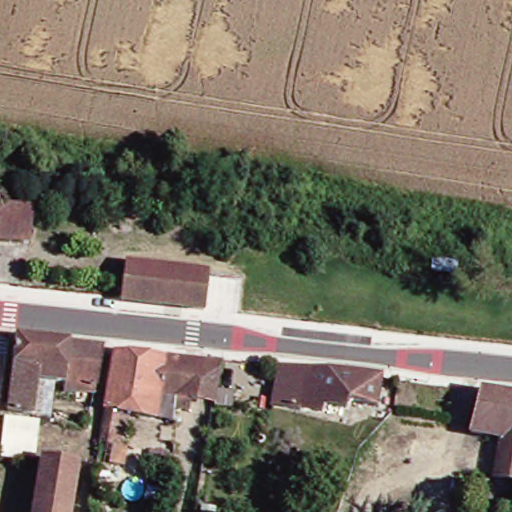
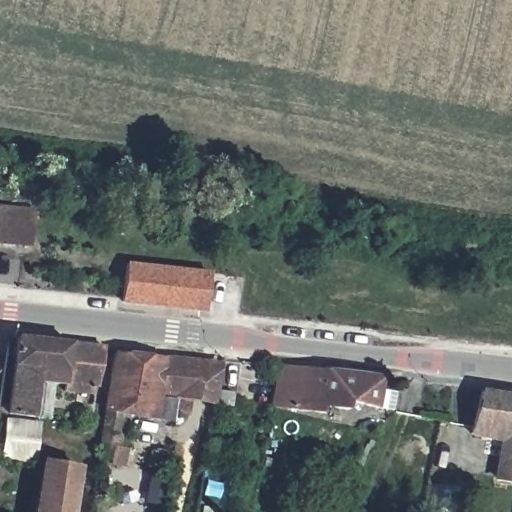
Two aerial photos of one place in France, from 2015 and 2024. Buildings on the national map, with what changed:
unchanged [(25,249),(0,245),(0,214),(28,218),(25,249)]
unchanged [(118,301),(123,263),(208,273),(206,309),(118,301)]
unchanged [(97,399),(66,393),(66,384),(49,379),(44,419),(7,413),(17,337),(105,352),(97,399)]
unchanged [(212,404),(192,400),(174,398),(156,395),(154,406),(130,403),(105,399),(114,349),(178,357),(201,359),(220,361),(212,404)]
unchanged [(359,375),(384,378),(380,404),(356,402),(354,401),(345,399),(343,404),(327,404),(322,419),(268,413),(275,367),(350,374),(359,375)]
unchanged [(491,479),(496,442),(485,438),(485,433),(471,432),(479,396),(512,398),(512,480),(491,479)]
unchanged [(105,399),(130,403),(123,444),(99,441),(105,399)]
unchanged [(0,442),(4,421),(40,428),(35,464),(33,473),(0,469),(0,442)]
unchanged [(68,512),(35,512),(42,463),(73,468),(68,512)]

